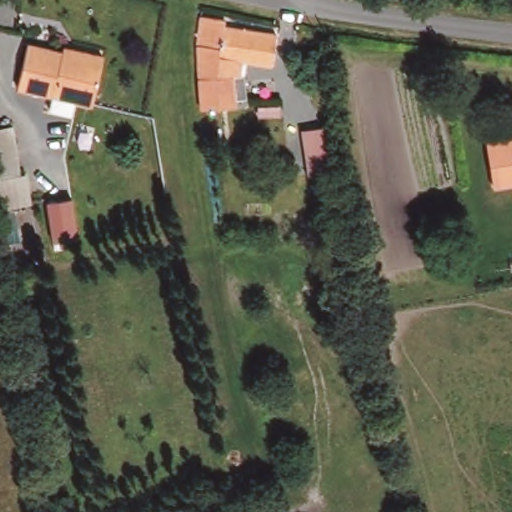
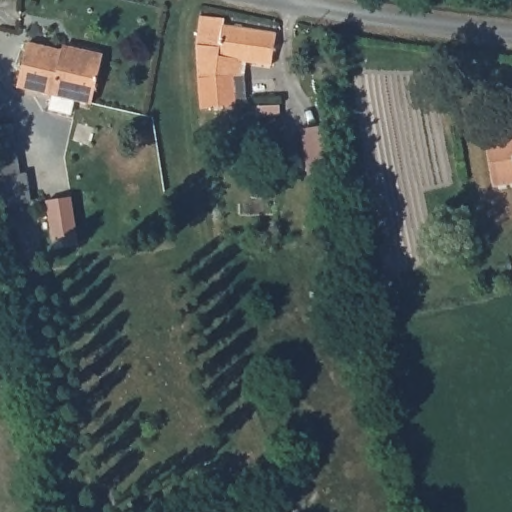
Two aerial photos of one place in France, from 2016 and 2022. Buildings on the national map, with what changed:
unchanged [(231,77),(232,115),(207,114),(200,114),(196,54),(201,10),(225,13),(223,26),(275,34),(272,63),(239,58),(237,78),(231,77)]
unchanged [(76,56),(77,49),(99,54),(88,105),(17,90),(26,45),(76,56)]
unchanged [(512,135),(512,180),(490,182),(485,137),(512,135)]
unchanged [(25,201),(0,205),(0,145),(15,143),(25,201)]

